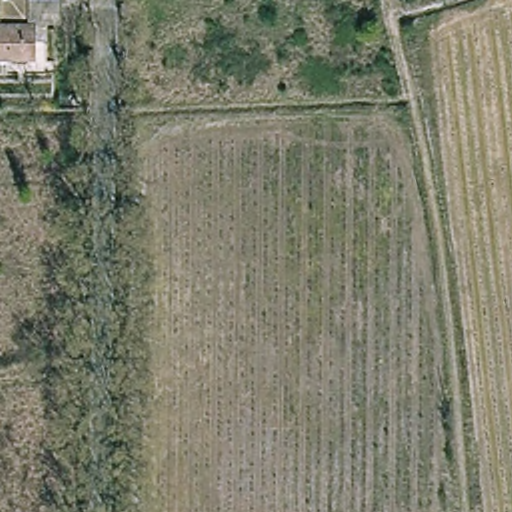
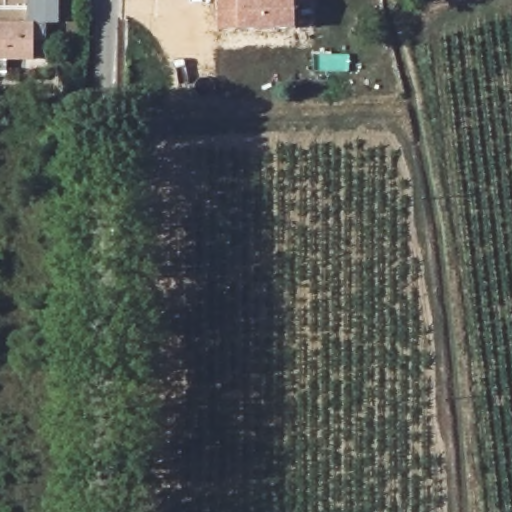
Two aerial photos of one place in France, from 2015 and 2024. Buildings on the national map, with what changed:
unchanged [(60,21),(38,21),(39,58),(0,59),(0,0),(59,0),(60,21)]
new [(296,28),(239,30),(217,31),(216,0),(295,0),(296,28)]

